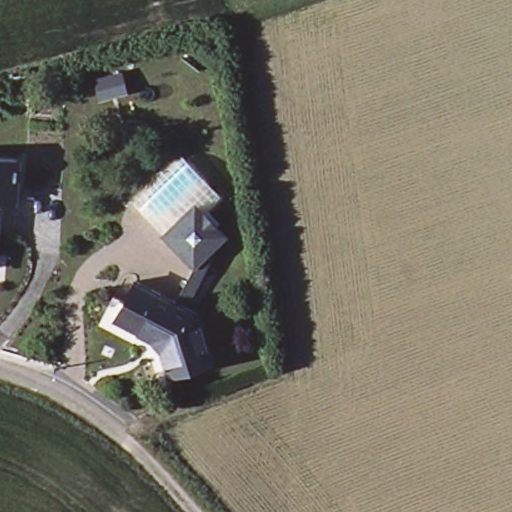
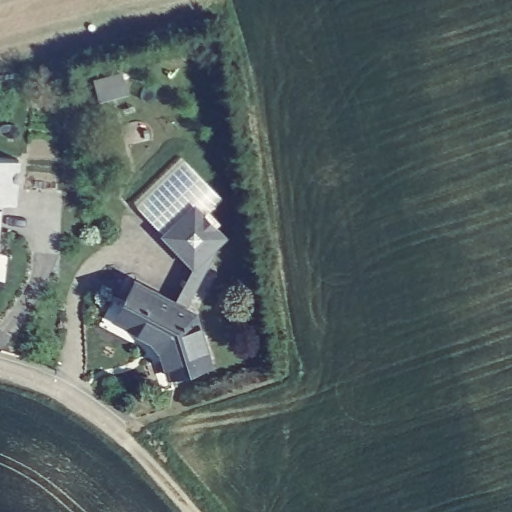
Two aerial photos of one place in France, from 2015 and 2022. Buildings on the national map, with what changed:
unchanged [(18,167),(17,211),(0,211),(0,166),(18,167)]
unchanged [(172,306),(191,269),(162,241),(192,210),(203,221),(223,241),(202,262),(205,267),(182,311),(172,306)]
unchanged [(113,322),(132,285),(172,306),(182,311),(190,316),(207,368),(169,380),(160,355),(150,342),(113,322)]

